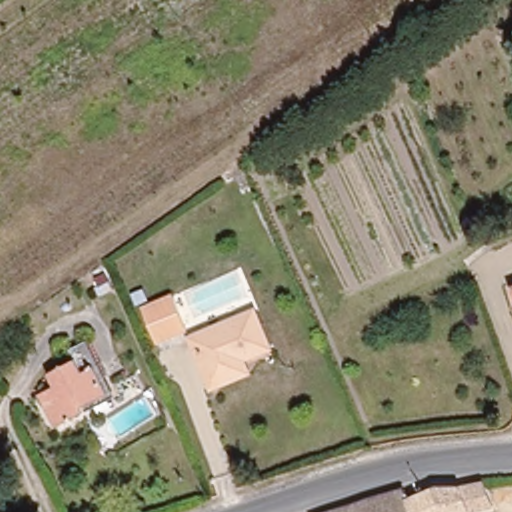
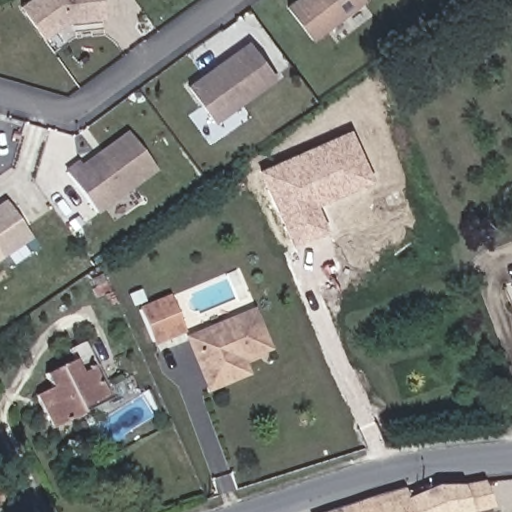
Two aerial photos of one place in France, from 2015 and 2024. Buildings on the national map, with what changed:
new [(102,0),(103,17),(65,21),(43,37),(20,6),(29,0),(102,0)]
new [(363,0),(310,40),(286,7),(297,0),(363,0)]
new [(249,42),(274,76),(213,121),(188,86),(249,42)]
new [(327,231),(291,245),(259,169),(350,129),(373,182),(317,206),(327,231)]
new [(77,164),(80,167),(127,134),(153,171),(93,214),(64,173),(77,164)]
new [(5,202),(29,237),(0,256),(0,206),(5,202)]
unchanged [(153,346),(140,315),(170,301),(184,333),(153,346)]
unchanged [(208,394),(187,343),(251,316),(266,353),(240,364),(246,378),(208,394)]
unchanged [(66,346),(77,341),(104,393),(80,405),(83,412),(53,427),(36,395),(52,386),(45,373),(73,359),(66,346)]
unchanged [(403,500),(429,490),(451,490),(478,483),(488,506),(463,512),(408,512),(403,500)]
unchanged [(334,510),(398,490),(403,500),(408,512),(336,512),(334,510)]
unchanged [(334,510),(336,512),(327,512),(334,510)]

